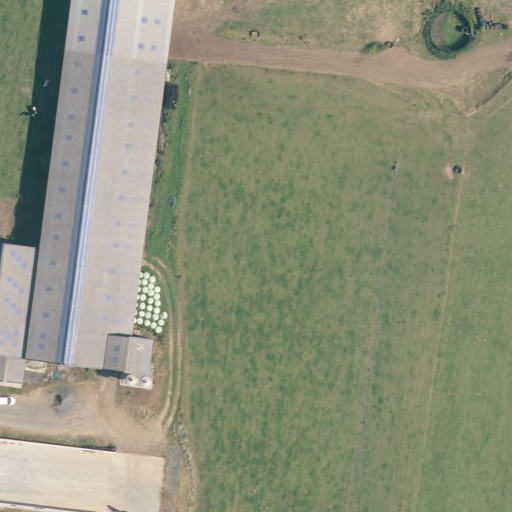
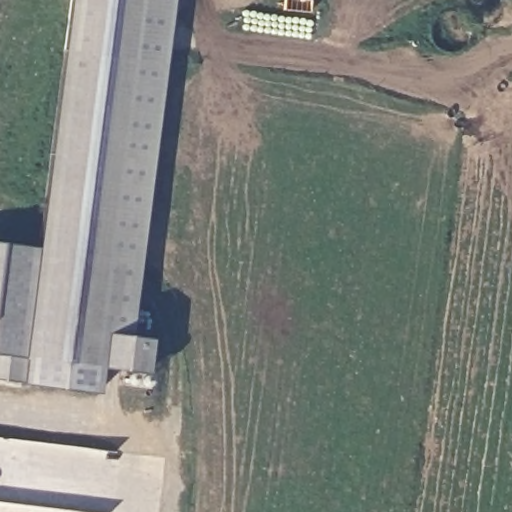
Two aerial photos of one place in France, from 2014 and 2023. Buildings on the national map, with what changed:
unchanged [(131,336),(151,338),(146,373),(150,374),(148,387),(122,384),(124,371),(25,357),(22,383),(0,380),(0,243),(37,248),(69,0),(171,0),(131,336)]

